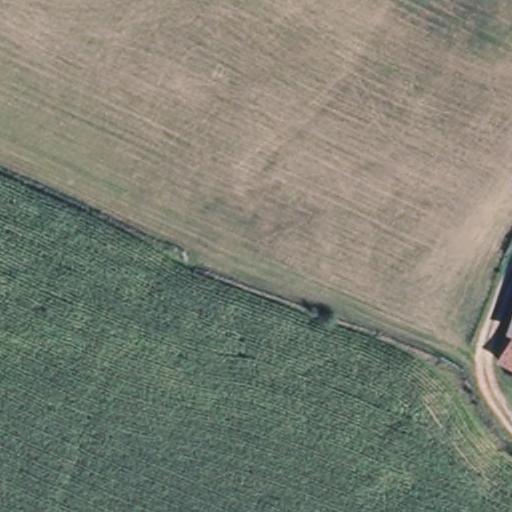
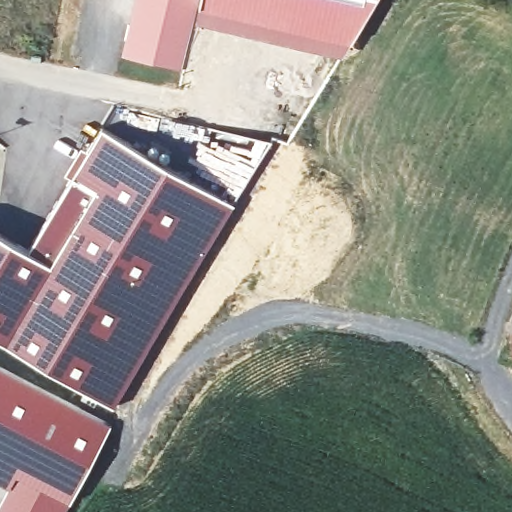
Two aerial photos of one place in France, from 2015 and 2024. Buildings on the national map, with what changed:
new [(137,0),(198,0),(182,72),(124,59),(137,0)]
new [(343,56),(194,18),(198,0),(376,0),(343,56)]
new [(64,185),(69,172),(101,125),(234,208),(114,407),(13,348),(0,340),(0,231),(27,247),(64,185)]
unchanged [(503,358),(512,332),(504,329),(512,309),(512,362),(503,358)]
new [(0,480),(0,366),(110,425),(69,503),(64,512),(0,512),(0,505),(10,486),(0,480)]

